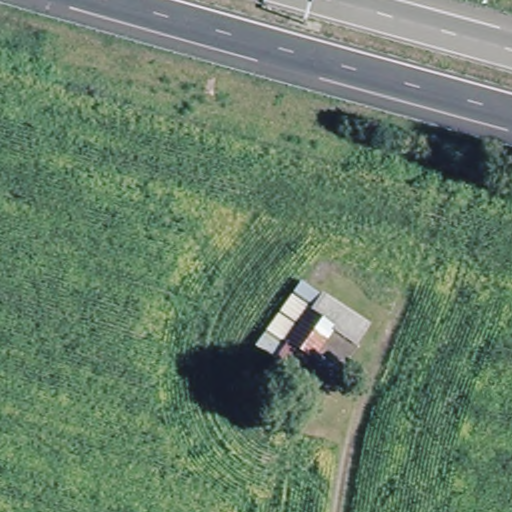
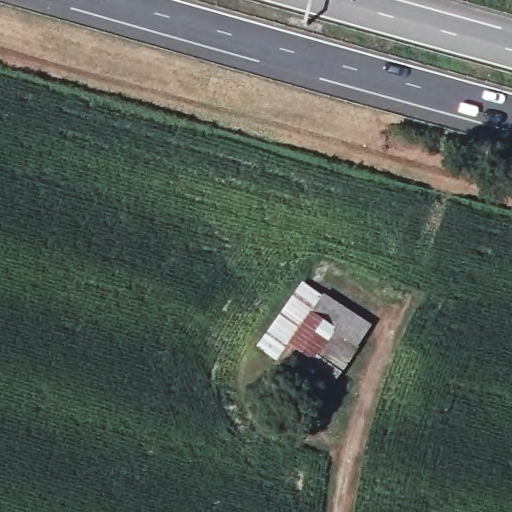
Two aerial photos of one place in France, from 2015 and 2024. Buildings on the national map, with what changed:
unchanged [(327,406),(261,359),(315,284),(381,331),(327,406)]

